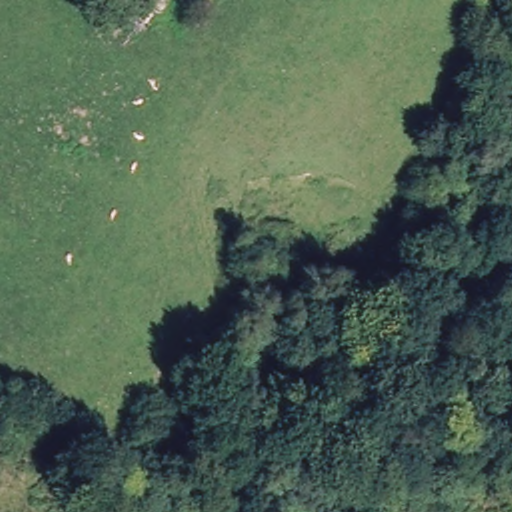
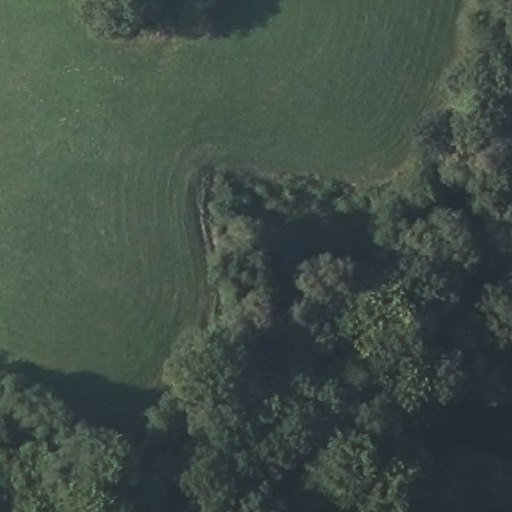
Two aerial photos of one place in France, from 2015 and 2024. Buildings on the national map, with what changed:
unchanged [(146,26),(135,36),(104,8),(111,0),(158,0),(140,21),(146,26)]

